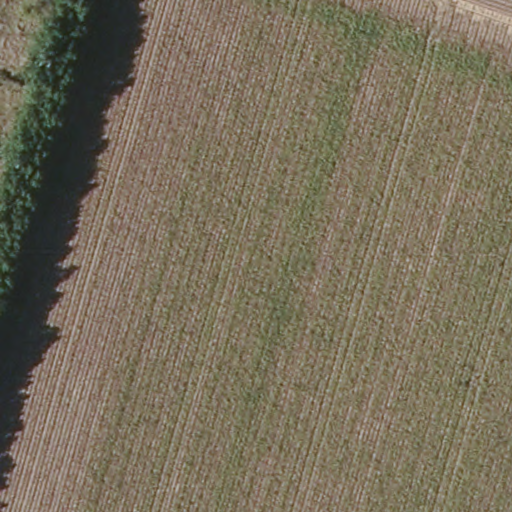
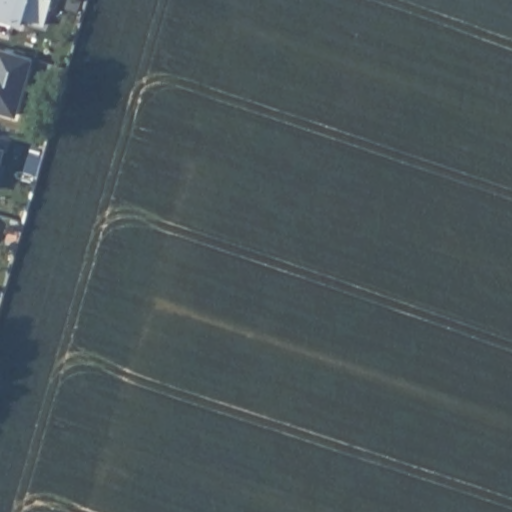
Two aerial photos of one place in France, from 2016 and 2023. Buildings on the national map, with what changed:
new [(25,19),(21,29),(0,22),(0,0),(54,0),(46,25),(25,19)]
new [(35,60),(17,114),(0,109),(0,55),(2,50),(35,60)]
new [(0,188),(0,144),(9,146),(0,188)]

